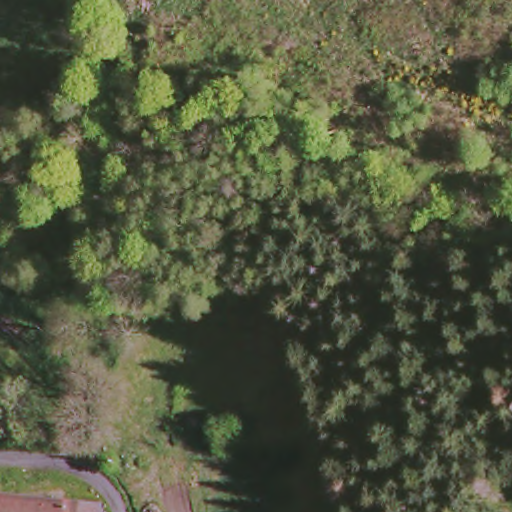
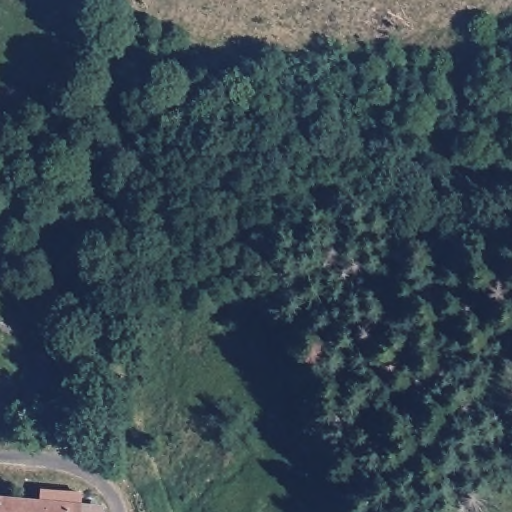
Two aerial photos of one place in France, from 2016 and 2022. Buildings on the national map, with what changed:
unchanged [(103,512),(0,512),(0,504),(103,512)]

